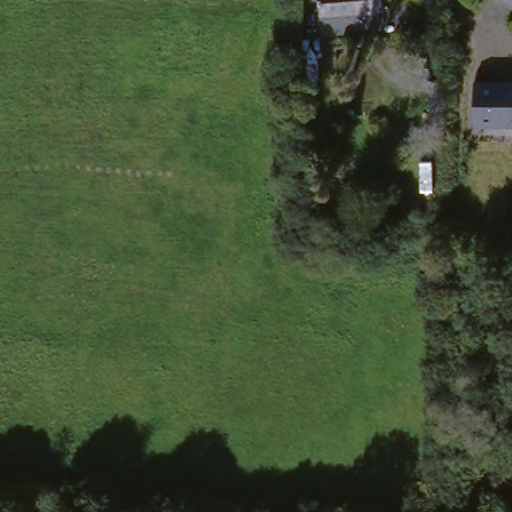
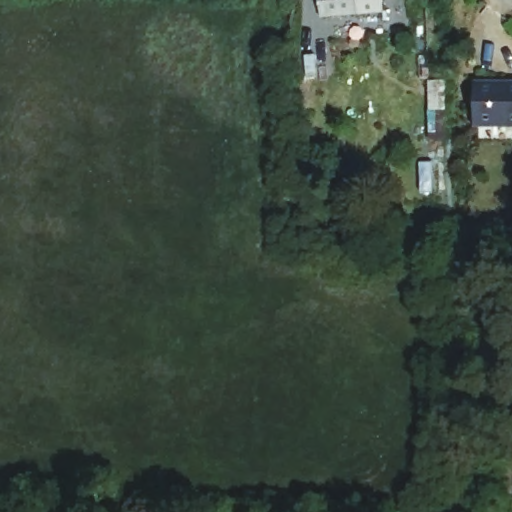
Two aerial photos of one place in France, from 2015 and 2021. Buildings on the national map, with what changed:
unchanged [(362,17),(321,21),(320,0),(379,0),(380,5),(380,15),(362,17)]
unchanged [(512,82),(512,128),(473,127),(473,81),(512,82)]
unchanged [(451,92),(451,122),(431,122),(431,92),(451,92)]

